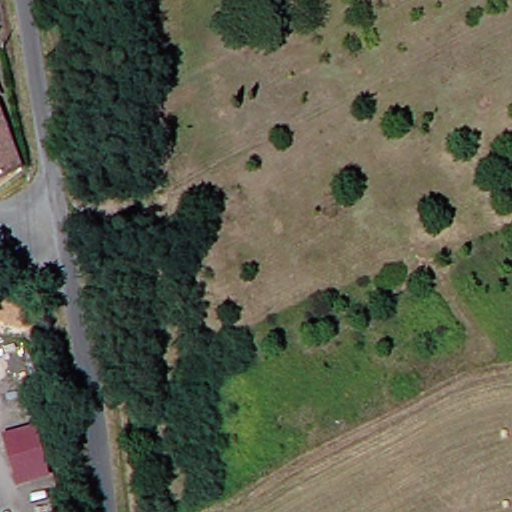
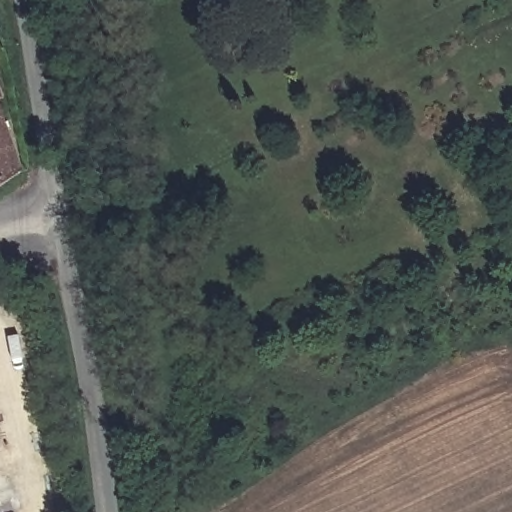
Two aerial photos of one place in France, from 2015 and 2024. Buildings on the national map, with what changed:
unchanged [(0,184),(0,142),(13,175),(0,184)]
demolished [(40,429),(52,479),(15,488),(3,437),(40,429)]

